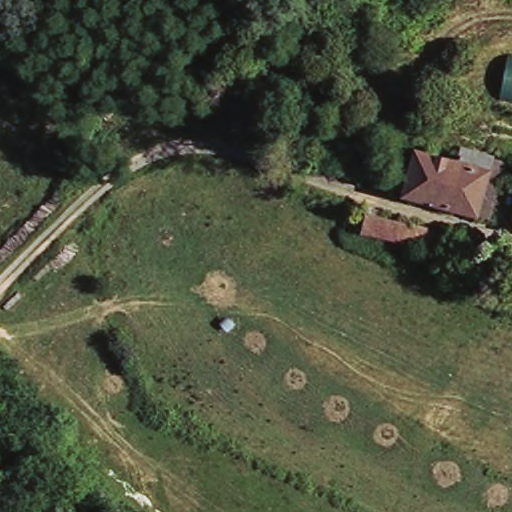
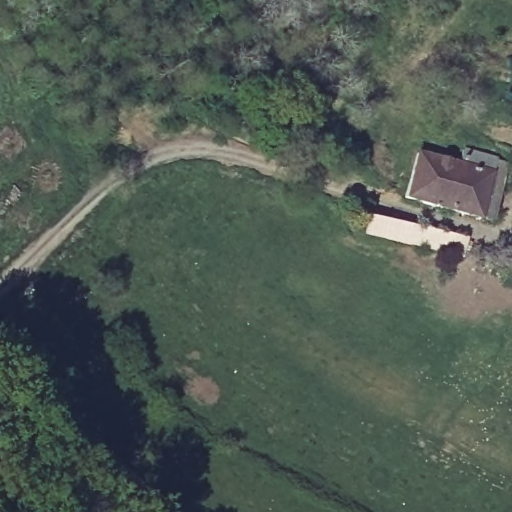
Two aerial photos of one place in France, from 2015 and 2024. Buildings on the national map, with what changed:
unchanged [(355,0),(369,0),(365,6),(355,0)]
unchanged [(512,57),(512,99),(505,97),(512,57)]
unchanged [(491,218),(405,194),(417,151),(460,162),(465,148),(492,155),(487,170),(504,174),(491,218)]
unchanged [(370,216),(464,238),(460,256),(364,234),(370,216)]

